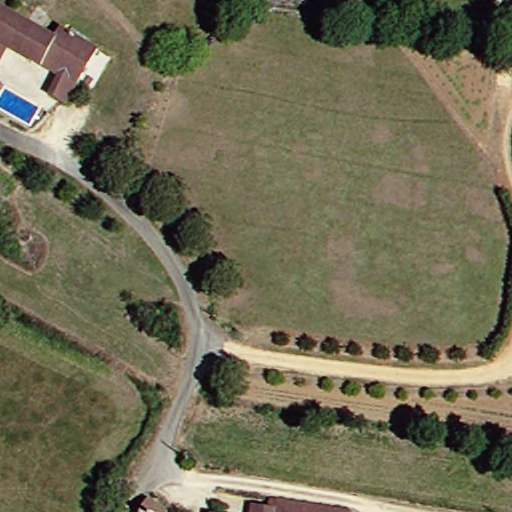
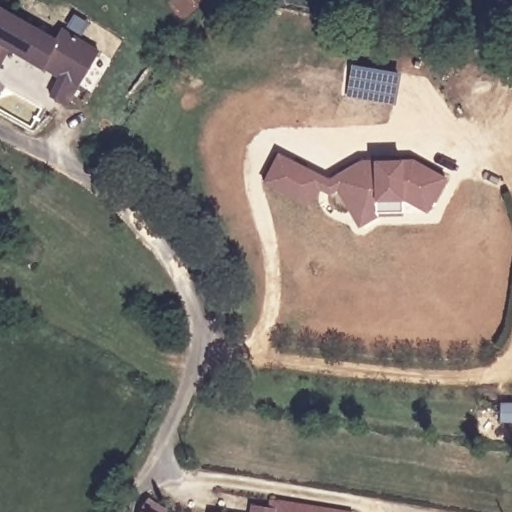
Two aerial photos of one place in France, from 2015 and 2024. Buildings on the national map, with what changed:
unchanged [(52,42),(57,31),(95,53),(66,108),(50,100),(62,75),(46,67),(43,72),(8,53),(0,67),(0,13),(52,42)]
new [(402,199),(402,215),(376,216),(358,228),(336,190),(328,195),(318,189),(310,207),(262,183),(277,153),(330,178),(360,160),(373,159),(402,159),(413,159),(446,178),(426,213),(402,199)]
unchanged [(265,508),(265,501),(332,512),(246,512),(247,505),(265,508)]

